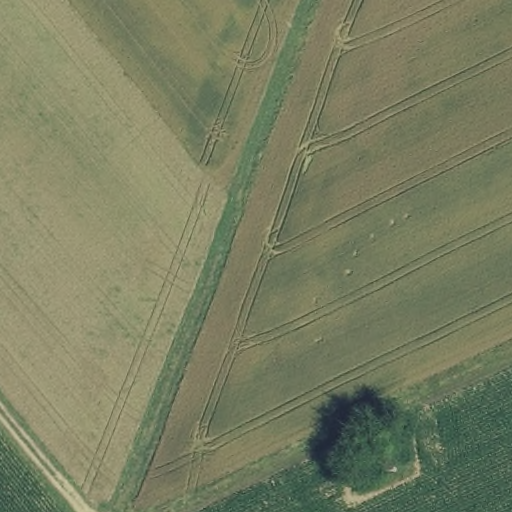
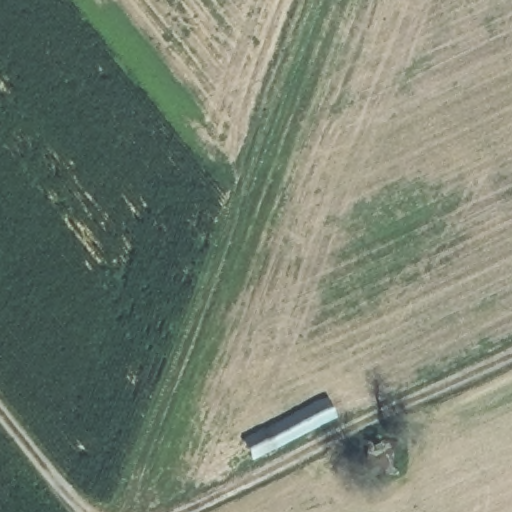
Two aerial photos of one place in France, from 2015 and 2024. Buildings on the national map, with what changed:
unchanged [(361,475),(349,447),(382,431),(396,459),(361,475)]

